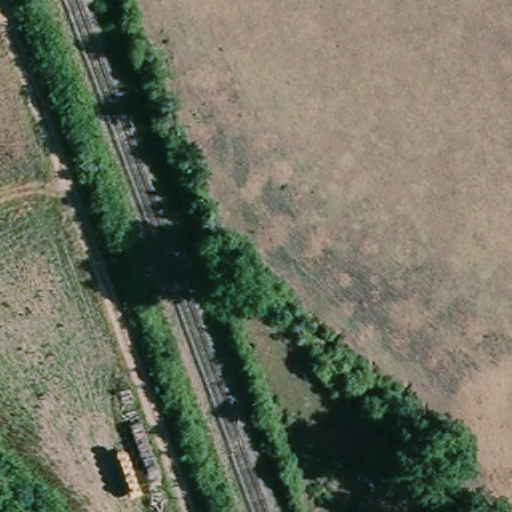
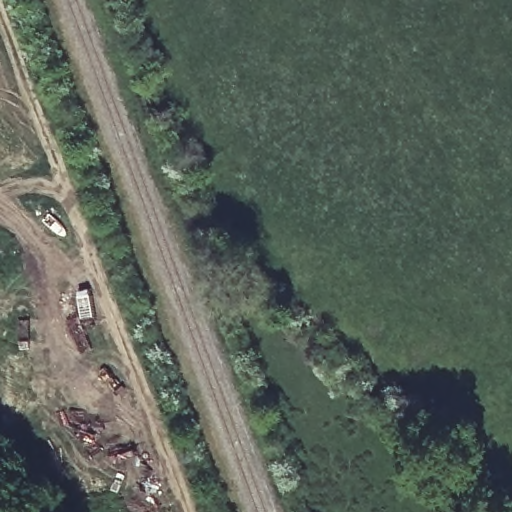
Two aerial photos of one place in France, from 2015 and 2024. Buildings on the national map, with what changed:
[]

